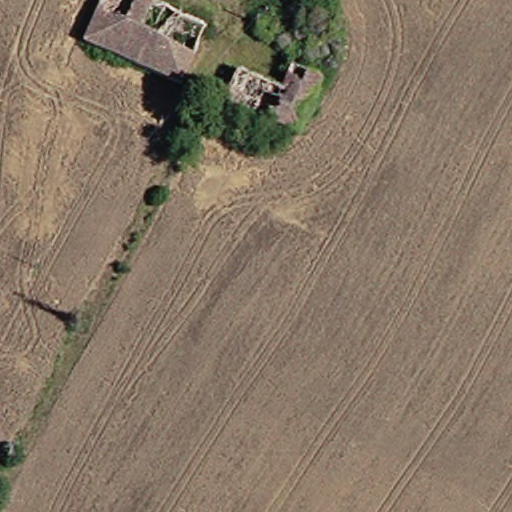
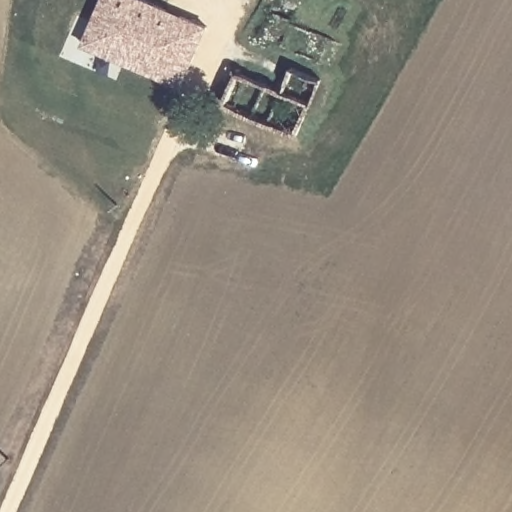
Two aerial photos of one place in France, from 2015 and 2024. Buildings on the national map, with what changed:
unchanged [(110,0),(159,0),(211,21),(189,81),(94,41),(110,0)]
unchanged [(310,130),(235,103),(247,72),(292,91),(302,67),(332,81),(310,130)]

